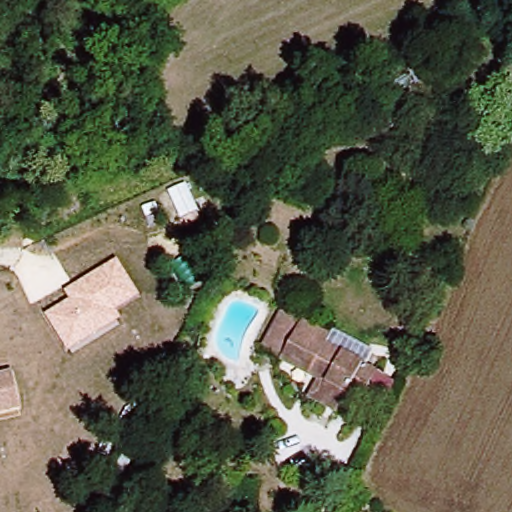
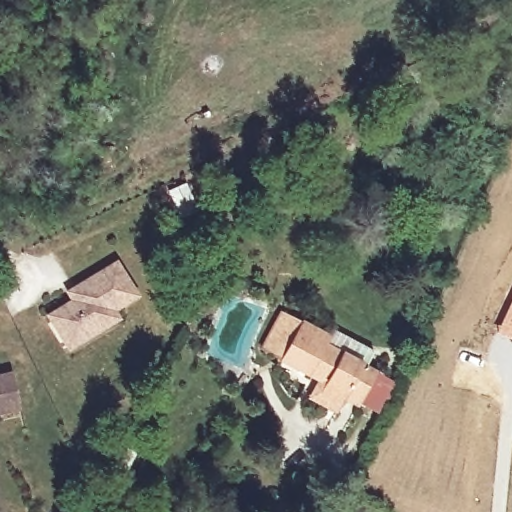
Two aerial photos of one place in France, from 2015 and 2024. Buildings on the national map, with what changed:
unchanged [(372,101),(366,87),(403,70),(409,84),(372,101)]
unchanged [(139,297),(116,312),(122,320),(66,353),(45,316),(69,301),(64,291),(115,260),(139,297)]
new [(512,339),(495,330),(512,295),(512,339)]
unchanged [(307,395),(317,376),(279,355),(262,346),(282,308),(299,317),(329,333),(324,341),(374,368),(356,401),(342,394),(340,401),(335,410),(307,395)]
unchanged [(10,376),(17,410),(0,414),(0,379),(10,376)]

